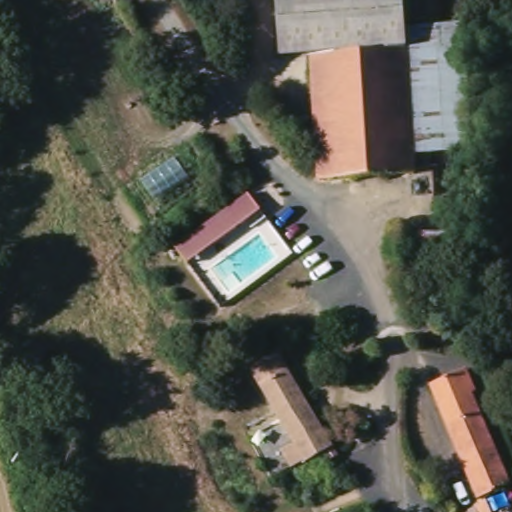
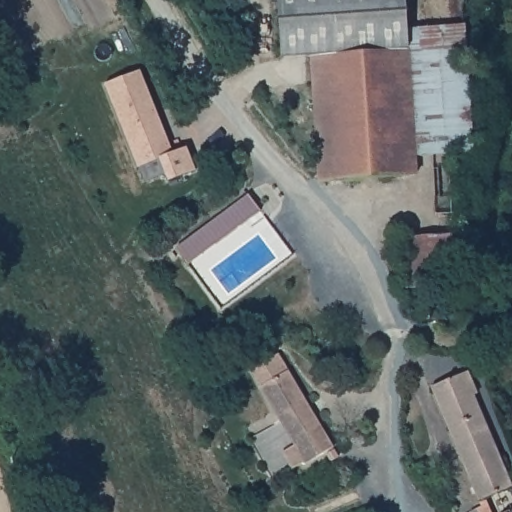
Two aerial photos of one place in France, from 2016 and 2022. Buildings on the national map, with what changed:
unchanged [(312,46),(287,49),(283,11),(282,0),(307,0),(308,8),(312,46)]
unchanged [(307,0),(407,0),(409,29),(410,36),(312,46),(308,8),(307,0)]
unchanged [(472,28),(477,155),(422,160),(410,36),(409,29),(472,28)]
unchanged [(422,161),(325,173),(312,46),(410,36),(422,161)]
new [(104,84),(140,71),(173,153),(186,147),(196,170),(168,182),(158,158),(138,170),(104,84)]
new [(187,264),(176,249),(248,195),(258,211),(187,264)]
unchanged [(406,292),(403,241),(458,237),(459,287),(406,292)]
unchanged [(287,453),(299,446),(256,371),(284,355),(338,448),(310,464),(298,471),(287,453)]
unchanged [(475,511),(485,503),(476,481),(436,383),(474,368),(493,415),(512,460),(512,512),(476,512),(475,511)]

